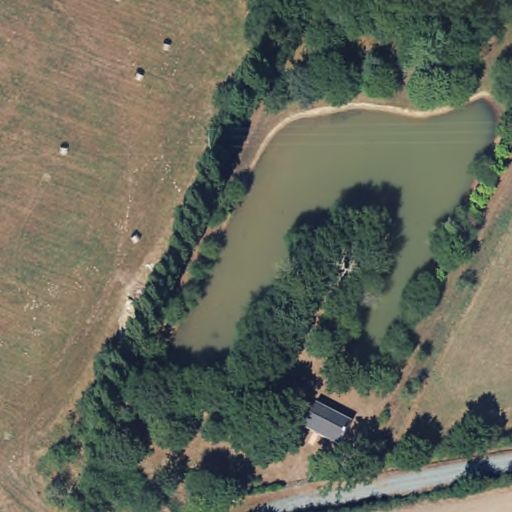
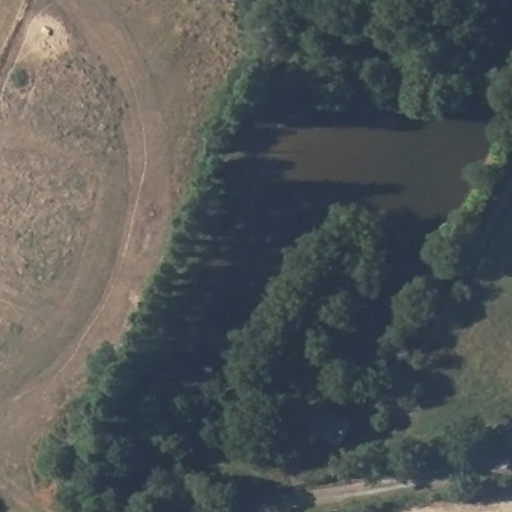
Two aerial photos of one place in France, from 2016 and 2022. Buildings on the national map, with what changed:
unchanged [(353,426),(342,449),(304,430),(316,406),(353,426)]

